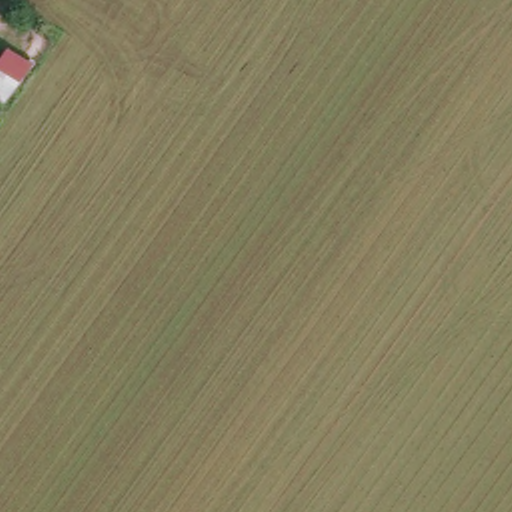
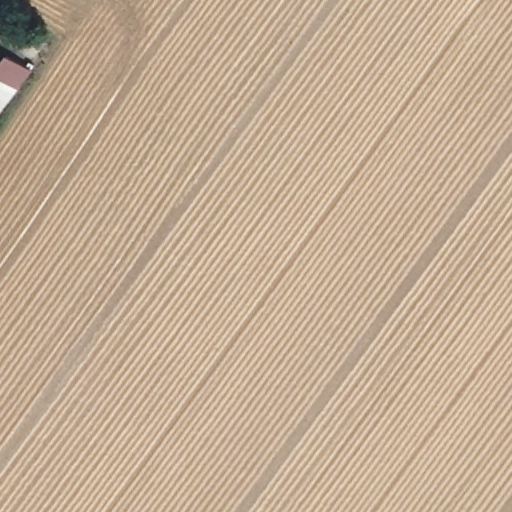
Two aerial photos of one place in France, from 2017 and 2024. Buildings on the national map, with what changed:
unchanged [(0,114),(0,77),(19,87),(0,114)]

